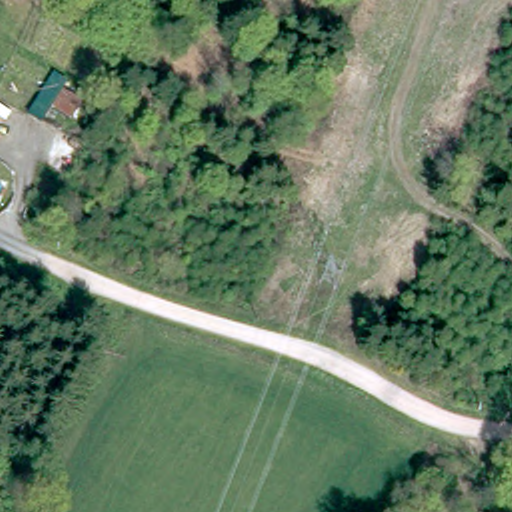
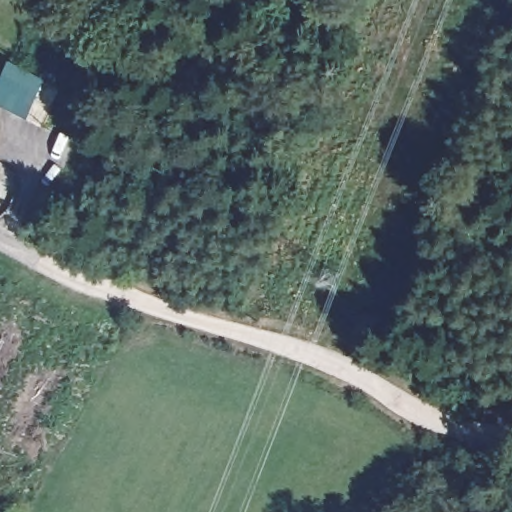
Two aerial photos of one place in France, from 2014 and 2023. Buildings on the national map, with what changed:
new [(9,60),(46,77),(28,118),(0,103),(0,82),(9,60)]

